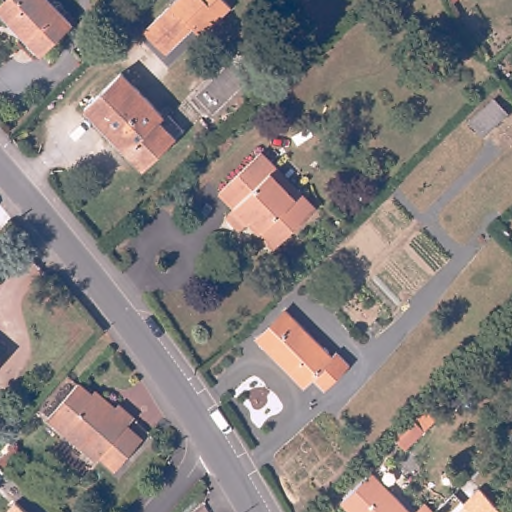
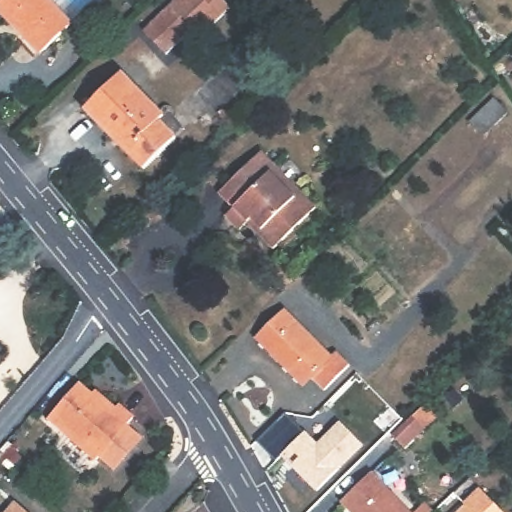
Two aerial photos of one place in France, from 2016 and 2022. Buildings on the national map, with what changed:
unchanged [(0,10),(0,3),(3,0),(52,0),(72,21),(40,51),(0,10)]
unchanged [(166,53),(143,28),(173,0),(195,27),(166,53)]
unchanged [(161,122),(176,138),(145,169),(87,109),(124,74),(164,116),(161,122)]
unchanged [(504,105),(512,112),(488,137),(474,124),(496,100),(504,105)]
unchanged [(277,247),(260,229),(264,226),(255,215),(243,226),(230,211),(238,204),(224,189),(267,149),(283,165),(302,186),(320,206),(277,247)]
unchanged [(332,355),(304,383),(258,339),(285,310),(332,355)]
unchanged [(0,365),(0,355),(4,360),(0,365)]
unchanged [(56,445),(69,430),(51,415),(82,381),(101,398),(105,394),(118,405),(121,401),(136,415),(131,421),(145,435),(118,466),(103,453),(99,457),(86,472),(56,445)]
unchanged [(421,423),(402,442),(389,429),(409,410),(421,423)]
new [(304,431),(317,443),(339,421),(364,447),(314,493),(279,456),(304,431)]
unchanged [(378,470),(422,512),(357,512),(347,502),(378,470)]
unchanged [(460,512),(467,506),(466,504),(481,490),(501,512),(460,512)]
unchanged [(30,512),(6,512),(16,500),(30,512)]

